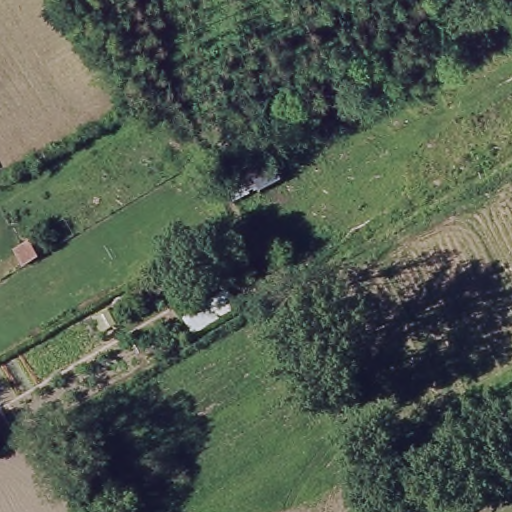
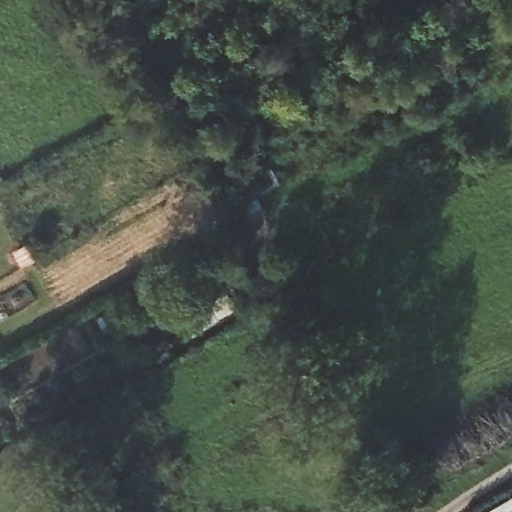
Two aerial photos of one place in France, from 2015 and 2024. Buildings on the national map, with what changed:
unchanged [(190,336),(177,317),(206,298),(218,318),(190,336)]

